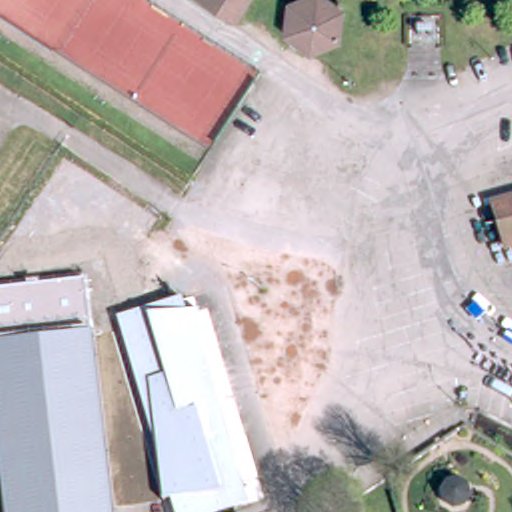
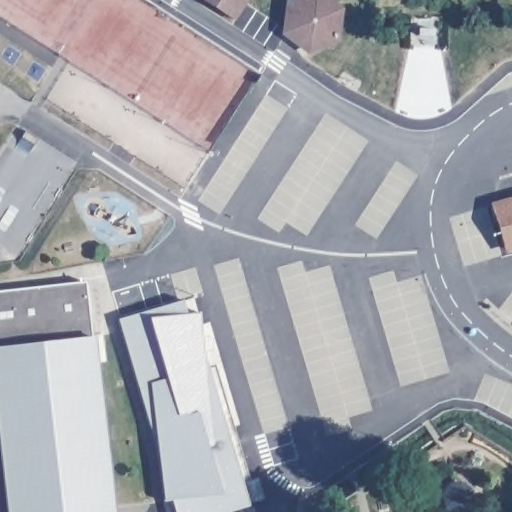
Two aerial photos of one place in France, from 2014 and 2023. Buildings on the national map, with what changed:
unchanged [(202,0),(254,0),(240,24),(202,0)]
unchanged [(287,33),(293,2),(299,0),(331,0),(346,13),(340,43),(311,53),(287,33)]
unchanged [(510,249),(497,207),(512,202),(512,248),(510,249)]
unchanged [(0,291),(84,282),(92,339),(0,349),(0,291)]
unchanged [(185,314),(200,313),(202,358),(247,506),(224,512),(174,512),(170,498),(161,499),(155,449),(116,319),(182,299),(185,314)]
unchanged [(111,512),(10,512),(0,428),(0,349),(92,339),(111,512)]
unchanged [(471,498),(467,506),(457,509),(450,504),(447,494),(452,487),(461,484),(469,489),(471,498)]
unchanged [(0,499),(1,512),(0,512),(0,499)]

